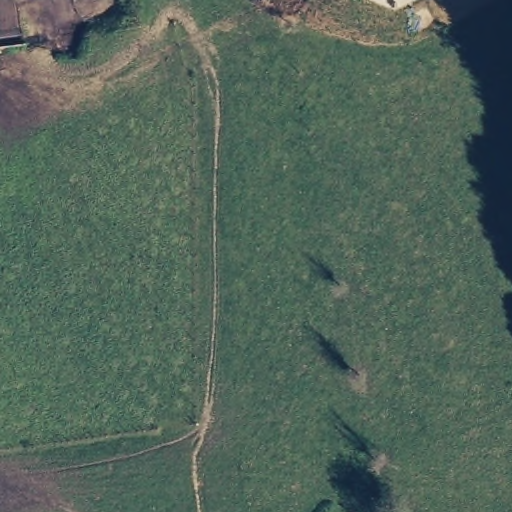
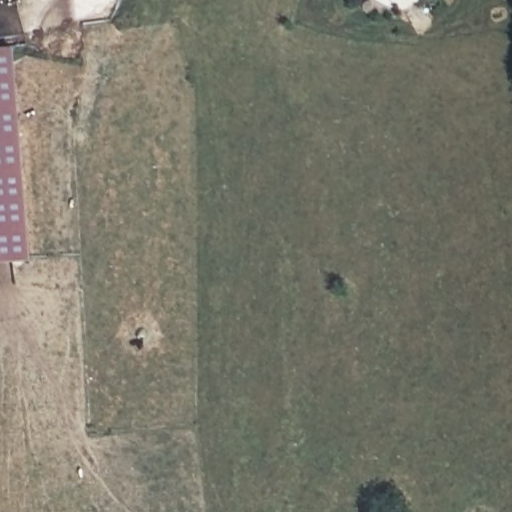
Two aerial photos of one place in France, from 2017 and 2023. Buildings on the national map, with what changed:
new [(30,255),(0,259),(0,48),(4,47),(30,255)]

